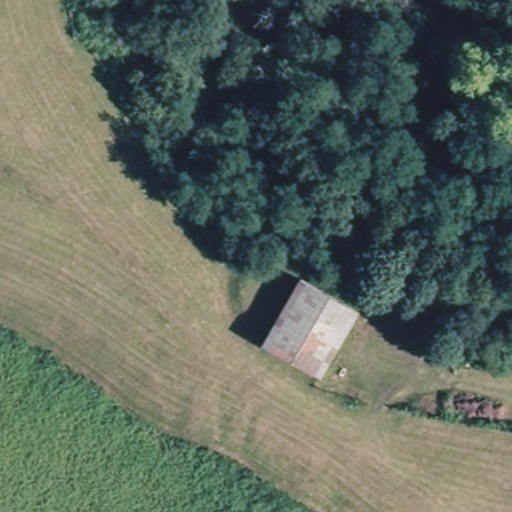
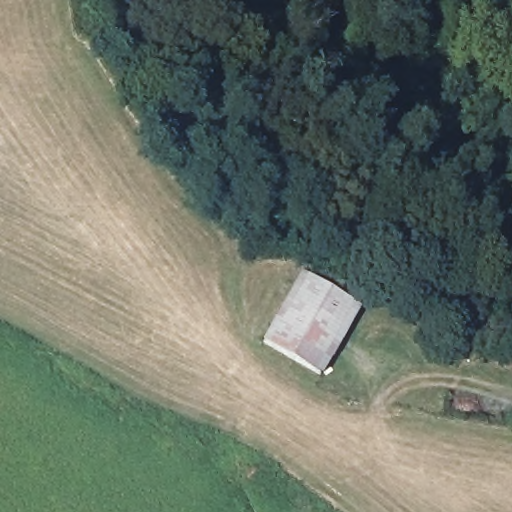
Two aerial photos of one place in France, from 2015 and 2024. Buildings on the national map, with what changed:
unchanged [(317,376),(258,345),(295,278),(354,307),(317,376)]

